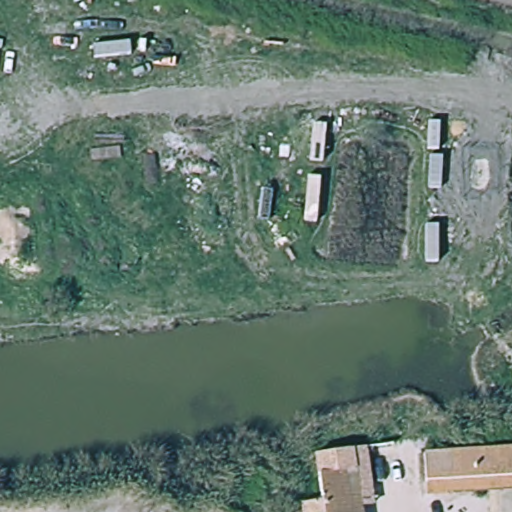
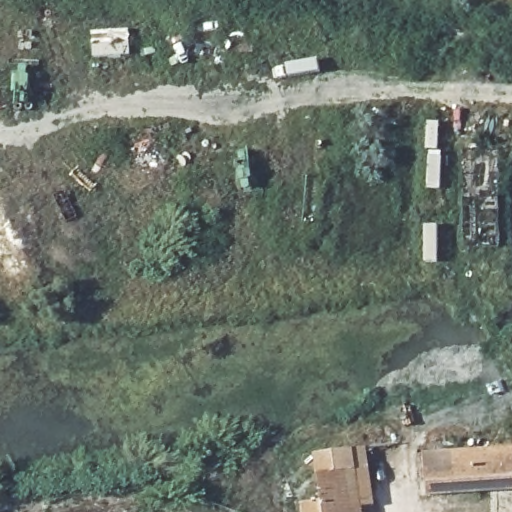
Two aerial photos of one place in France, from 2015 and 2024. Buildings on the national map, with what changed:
unchanged [(423,450),(512,445),(512,491),(424,500),(423,450)]
unchanged [(363,512),(323,512),(316,472),(357,466),(363,512)]

